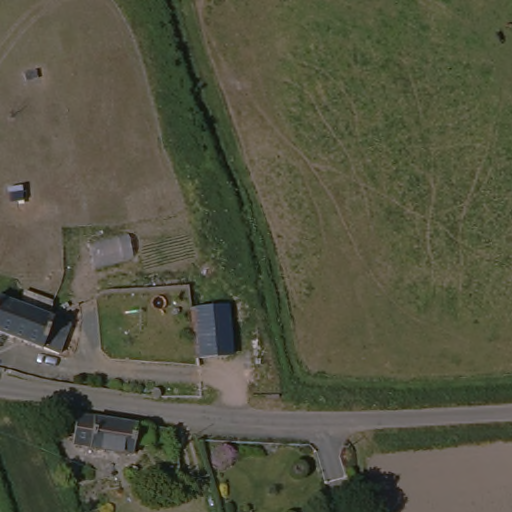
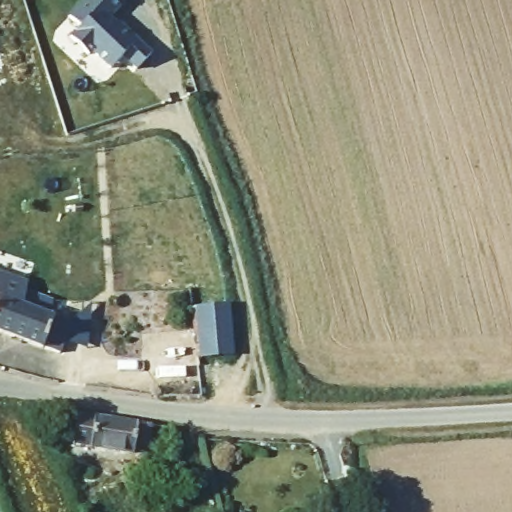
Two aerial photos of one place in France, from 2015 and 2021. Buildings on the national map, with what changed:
new [(114,19),(152,54),(136,71),(123,58),(109,70),(92,51),(88,55),(71,36),(81,27),(69,15),(84,0),(131,0),(114,19)]
unchanged [(0,335),(0,303),(5,303),(6,293),(8,287),(36,291),(33,319),(57,321),(54,341),(0,335)]
unchanged [(203,310),(236,307),(239,353),(203,356),(203,310)]
unchanged [(138,435),(137,447),(74,443),(79,412),(111,415),(154,421),(153,435),(138,435)]

